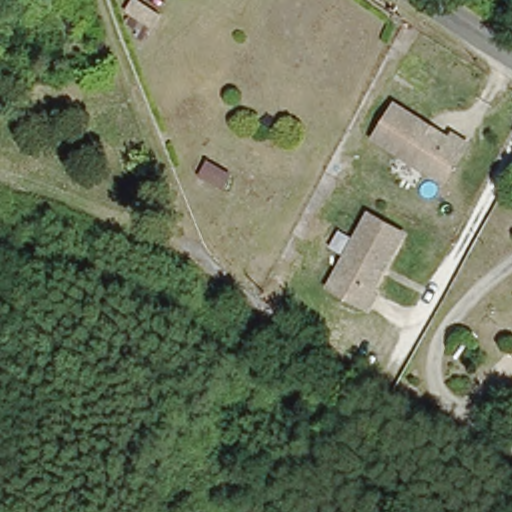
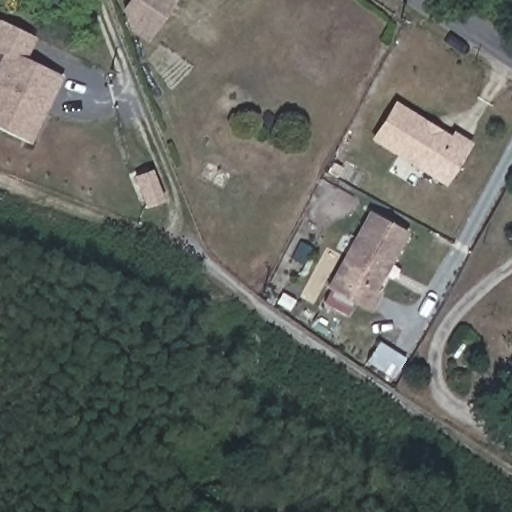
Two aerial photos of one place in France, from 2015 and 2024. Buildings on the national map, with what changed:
new [(131,31),(122,8),(127,0),(174,0),(148,42),(131,31)]
demolished [(158,15),(151,32),(125,20),(131,4),(158,15)]
new [(2,54),(0,53),(0,22),(36,39),(28,60),(63,75),(31,142),(0,127),(0,58),(2,54)]
unchanged [(467,143),(443,181),(373,137),(394,104),(422,121),(424,127),(431,131),(437,130),(449,138),(452,134),(467,143)]
unchanged [(389,260),(383,263),(379,270),(381,276),(375,289),(379,291),(371,306),(331,285),(369,212),(405,231),(389,260)]

